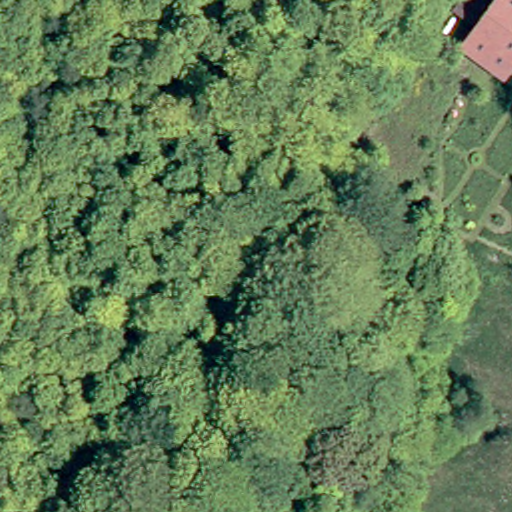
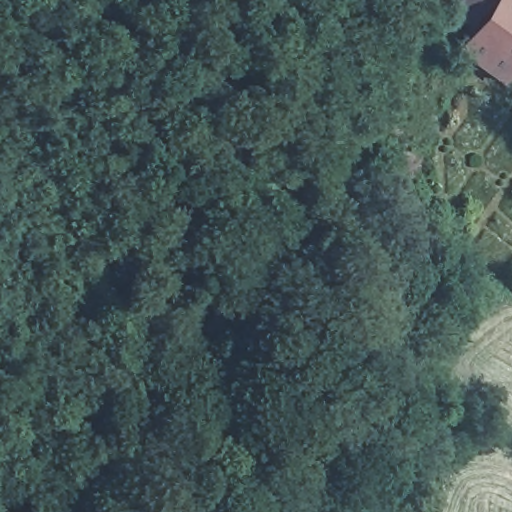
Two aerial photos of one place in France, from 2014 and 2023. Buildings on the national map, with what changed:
unchanged [(480,37),(508,0),(512,0),(512,80),(508,85),(467,55),(480,37)]
unchanged [(458,19),(470,3),(486,13),(474,30),(458,19)]

